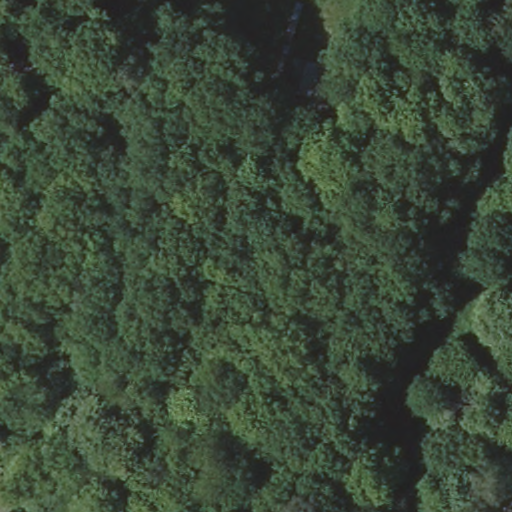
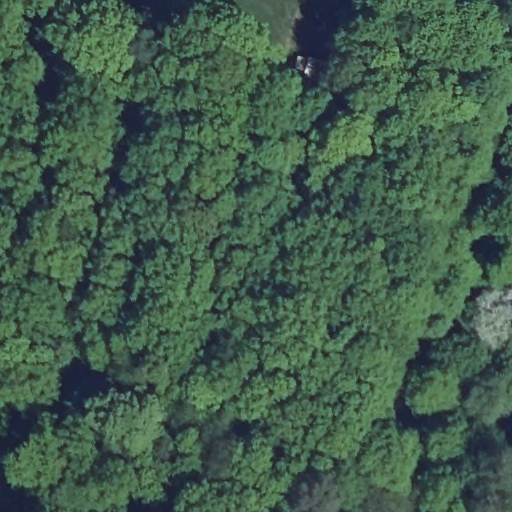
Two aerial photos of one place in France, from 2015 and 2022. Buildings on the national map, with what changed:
unchanged [(345,63),(335,101),(296,90),(307,55),(345,63)]

